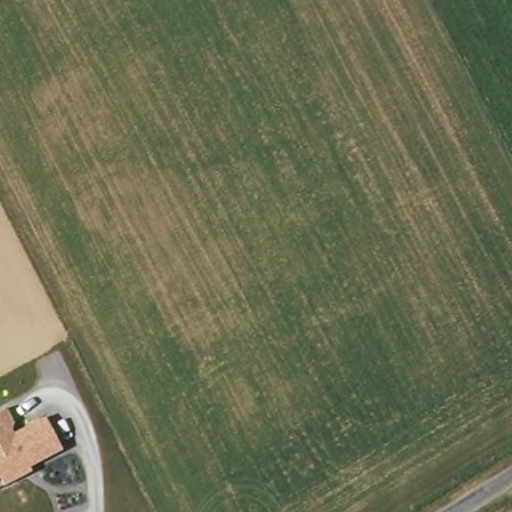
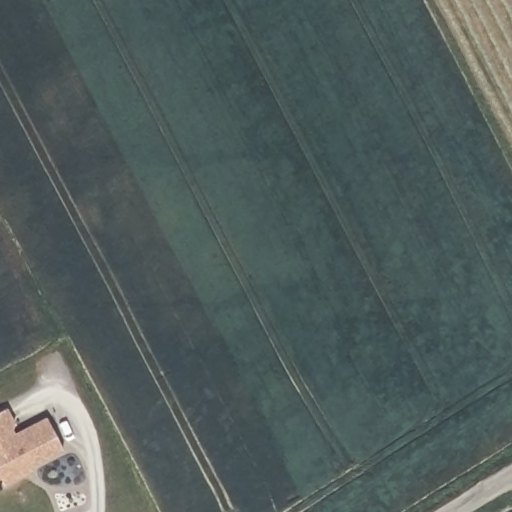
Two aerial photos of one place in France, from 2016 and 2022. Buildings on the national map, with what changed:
unchanged [(0,411),(7,407),(15,425),(11,427),(14,433),(46,417),(62,449),(29,466),(31,471),(5,484),(0,478),(0,411)]

